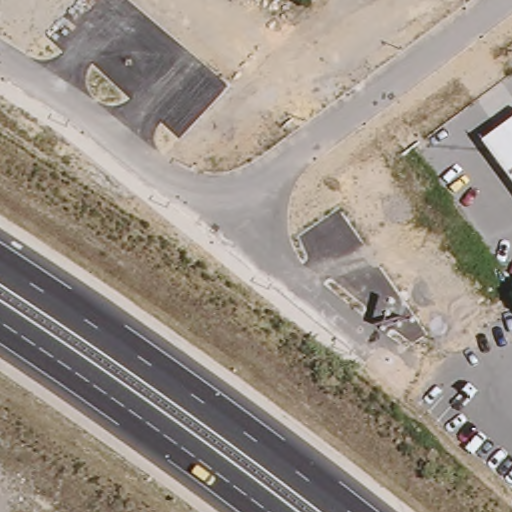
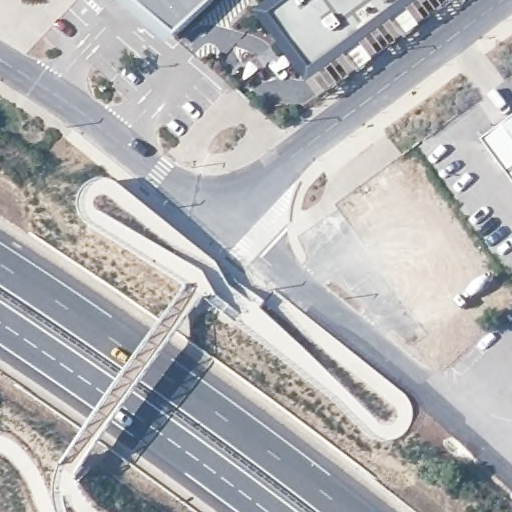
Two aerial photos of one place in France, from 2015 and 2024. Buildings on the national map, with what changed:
new [(167,44),(116,0),(214,0),(167,44)]
new [(272,0),(423,0),(310,83),(258,11),(272,0)]
demolished [(484,56),(451,14),(469,0),(512,0),(512,33),(484,56)]
unchanged [(512,120),(512,176),(486,139),(512,120)]

